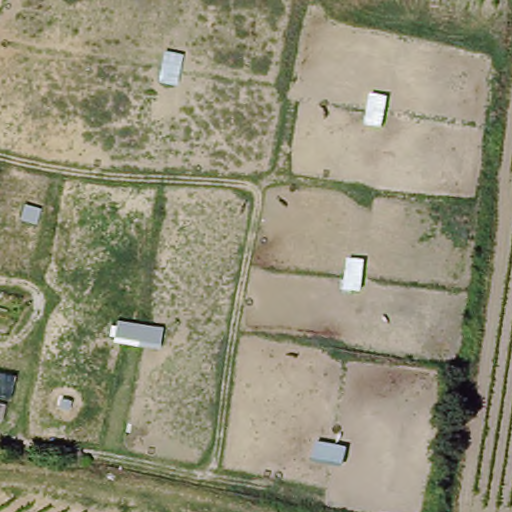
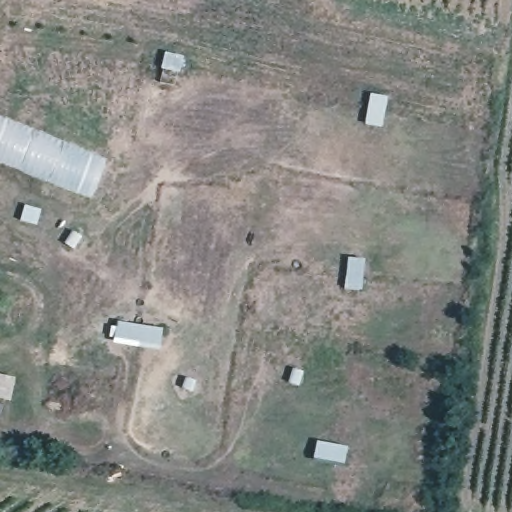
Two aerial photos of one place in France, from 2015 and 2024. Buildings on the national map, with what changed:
new [(167,47),(184,51),(177,85),(160,82),(167,47)]
new [(368,94),(388,96),(384,126),(365,124),(368,94)]
new [(92,199),(0,162),(0,116),(108,158),(92,199)]
new [(349,256),(367,258),(364,290),(346,288),(349,256)]
unchanged [(163,328),(157,355),(110,349),(114,326),(163,328)]

